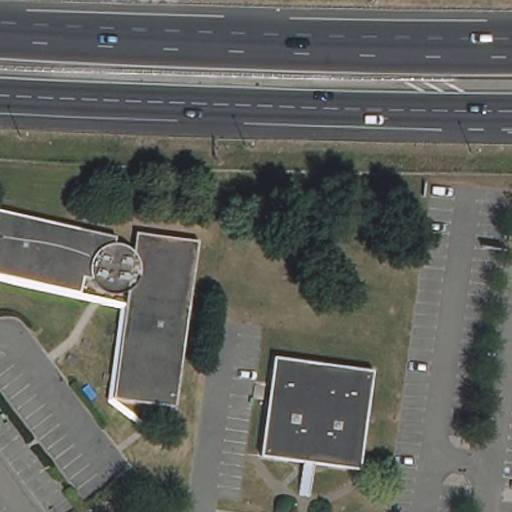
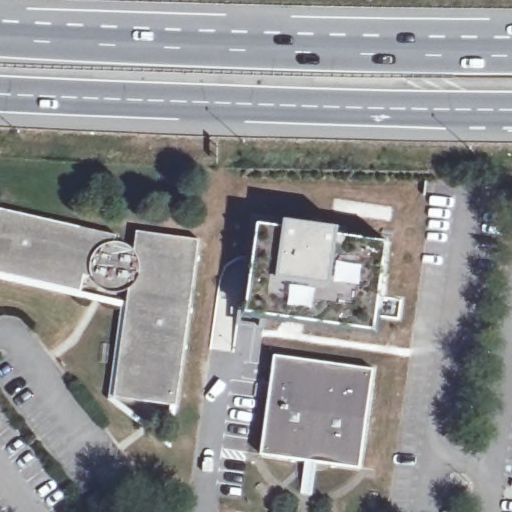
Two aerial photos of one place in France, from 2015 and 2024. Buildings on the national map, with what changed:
unchanged [(116,392),(129,297),(131,285),(110,287),(93,273),(87,271),(84,287),(16,271),(0,268),(0,205),(119,231),(118,237),(128,239),(136,246),(139,225),(201,234),(178,401),(173,400),(116,392)]
new [(288,221),(340,228),(339,237),(388,243),(376,330),(260,315),(247,313),(261,223),(286,226),(288,221)]
unchanged [(84,287),(129,297),(116,392),(168,431),(173,400),(178,401),(173,443),(110,395),(123,302),(0,274),(0,268),(16,271),(84,287)]
new [(259,328),(241,326),(243,312),(260,315),(259,328)]
unchanged [(303,489),(308,456),(264,450),(276,351),(376,364),(364,463),(319,457),(314,491),(303,489)]

